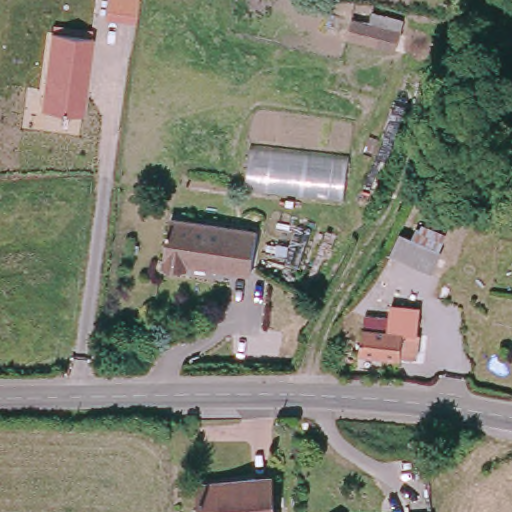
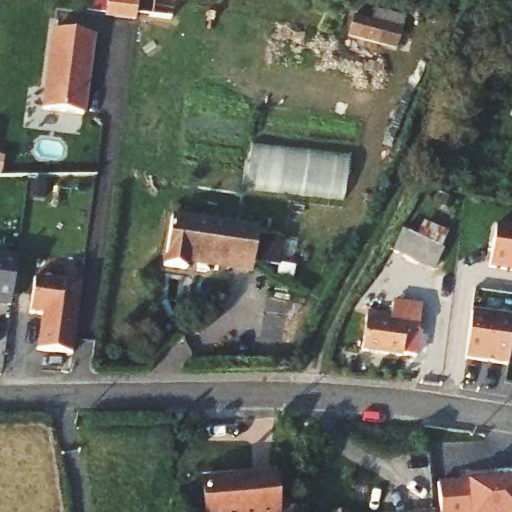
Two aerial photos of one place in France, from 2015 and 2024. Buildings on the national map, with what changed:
unchanged [(105,19),(107,0),(136,0),(133,22),(105,19)]
unchanged [(346,40),(355,12),(402,25),(395,53),(346,40)]
unchanged [(83,116),(41,110),(50,34),(52,25),(94,30),(93,38),(83,116)]
unchanged [(343,202),(245,190),(250,144),(348,155),(343,202)]
unchanged [(259,229),(255,266),(190,258),(190,266),(168,265),(172,216),(259,229)]
new [(495,226),(512,228),(512,272),(489,268),(495,226)]
unchanged [(441,250),(433,273),(393,255),(401,235),(441,250)]
new [(17,257),(10,308),(0,307),(0,254),(17,257)]
new [(80,286),(71,355),(37,351),(42,316),(30,315),(35,279),(80,286)]
new [(512,320),(507,362),(463,356),(470,310),(512,316),(512,320)]
unchanged [(404,320),(403,332),(417,333),(414,358),(400,357),(361,353),(365,315),(404,320)]
unchanged [(272,476),(273,512),(204,512),(202,479),(272,476)]
new [(465,482),(466,485),(512,481),(512,512),(441,512),(438,485),(465,482)]
new [(297,488),(297,512),(283,512),(282,489),(297,488)]
unchanged [(335,508),(352,509),(353,512),(335,512),(335,508)]

